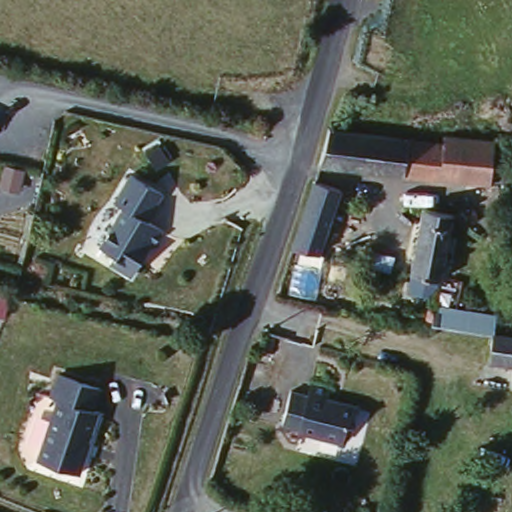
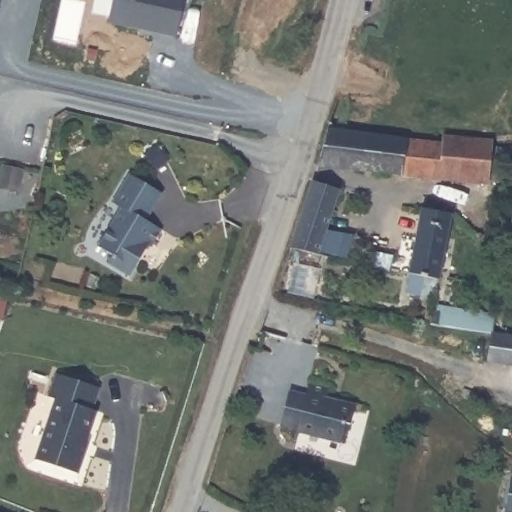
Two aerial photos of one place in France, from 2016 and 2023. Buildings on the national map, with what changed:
new [(177,33),(110,18),(114,0),(184,0),(177,33)]
unchanged [(347,129),(392,134),(429,138),(432,129),(486,136),(482,180),(442,176),(310,164),(322,126),(347,129)]
unchanged [(165,192),(150,219),(160,226),(134,275),(107,264),(112,254),(100,249),(124,209),(115,204),(130,175),(165,192)]
unchanged [(300,208),(309,180),(336,189),(312,253),(287,249),(300,208)]
unchanged [(411,273),(418,208),(447,212),(438,277),(411,273)]
unchanged [(336,244),(363,249),(360,265),(332,261),(336,244)]
unchanged [(427,323),(430,305),(475,311),(485,312),(482,332),(427,323)]
unchanged [(478,359),(482,332),(483,332),(512,336),(512,364),(478,359)]
unchanged [(55,394),(47,393),(52,370),(98,379),(93,401),(99,402),(91,445),(94,446),(90,466),(43,457),(55,394)]
unchanged [(298,431),(300,424),(287,423),(294,385),(307,388),(311,375),(318,377),(332,379),(331,393),(359,396),(356,417),(350,417),(346,438),(307,433),(298,431)]

